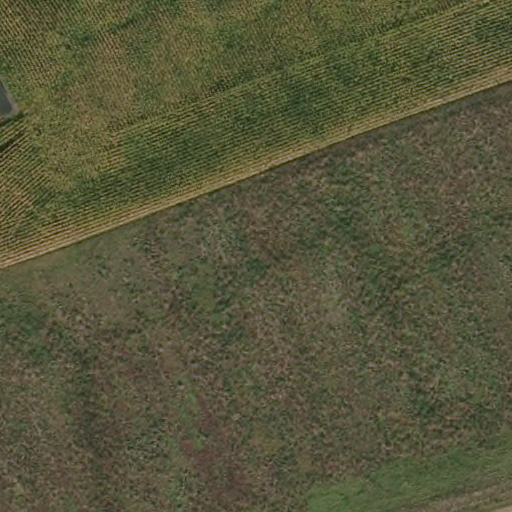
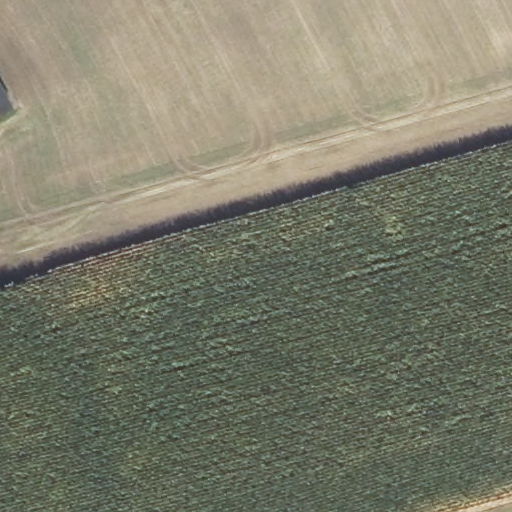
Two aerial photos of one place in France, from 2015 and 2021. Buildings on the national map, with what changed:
unchanged [(6,112),(0,115),(0,102),(6,112)]

